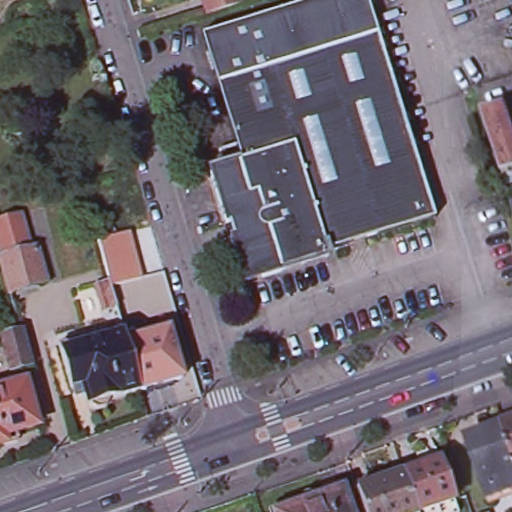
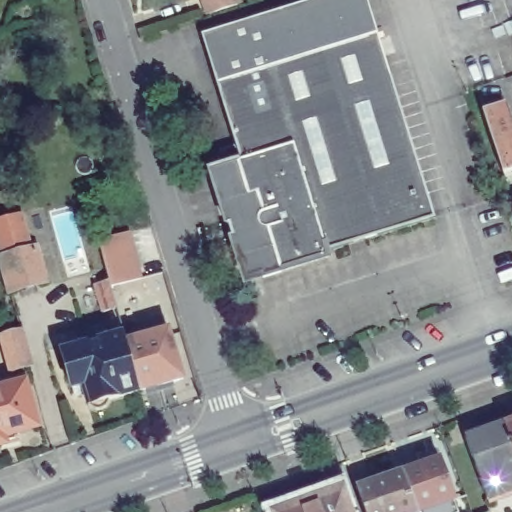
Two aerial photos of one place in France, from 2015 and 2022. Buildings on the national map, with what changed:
unchanged [(201,32),(305,0),(367,0),(377,32),(216,82),(201,32)]
unchanged [(227,116),(216,82),(377,32),(387,64),(227,116)]
unchanged [(436,216),(328,251),(329,255),(266,276),(260,258),(243,264),(237,245),(235,246),(210,171),(241,161),(227,116),(387,64),(436,216)]
unchanged [(504,103),(512,127),(512,168),(503,171),(483,110),(504,103)]
unchanged [(21,213),(31,248),(1,256),(0,254),(0,219),(21,213)]
unchanged [(31,248),(37,246),(46,281),(11,291),(1,256),(31,248)]
unchanged [(104,312),(96,284),(109,281),(117,309),(104,312)]
unchanged [(106,406),(104,408),(101,409),(98,410),(95,410),(92,409),(89,407),(87,404),(83,392),(81,385),(74,387),(72,388),(59,344),(77,339),(83,337),(85,344),(101,340),(99,332),(122,326),(124,333),(127,341),(140,390),(110,398),(110,401),(108,404),(106,406)]
unchanged [(127,341),(168,329),(182,378),(140,390),(127,341)]
unchanged [(29,365),(10,370),(2,337),(20,332),(29,365)]
unchanged [(2,448),(0,443),(0,384),(23,377),(36,426),(19,430),(22,441),(2,448)]
unchanged [(512,416),(512,440),(504,419),(512,416)]
unchanged [(466,433),(504,419),(512,440),(512,485),(487,494),(466,433)]
unchanged [(399,468),(407,465),(443,452),(458,494),(423,507),(424,512),(371,512),(361,482),(399,468)]
unchanged [(281,512),(280,507),(304,498),(304,491),(308,488),(315,487),(321,493),(331,490),(327,476),(339,473),(343,486),(347,485),(356,512),(281,512)]
unchanged [(489,512),(487,512),(489,511),(489,512)]

